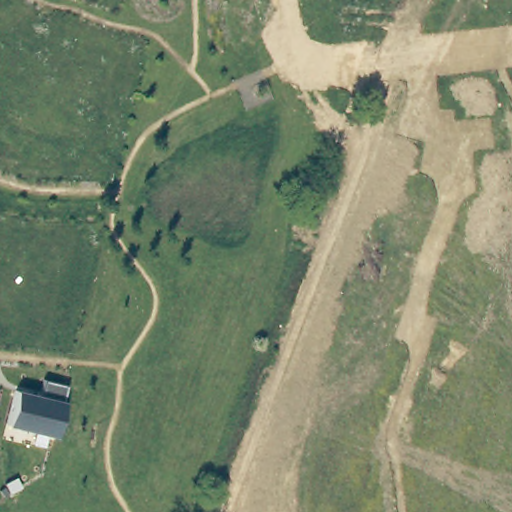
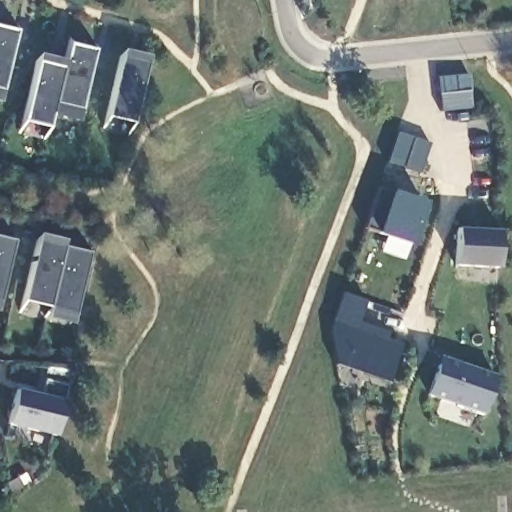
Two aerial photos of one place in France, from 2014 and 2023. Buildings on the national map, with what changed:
new [(15,31),(0,97),(0,27),(15,31)]
new [(22,122),(37,54),(64,60),(68,44),(94,49),(79,109),(76,120),(49,115),(46,127),(22,122)]
new [(122,50),(148,56),(132,122),(106,117),(122,50)]
new [(441,111),(439,94),(438,77),(469,73),(471,91),(472,108),(441,111)]
new [(426,201),(411,246),(375,234),(390,190),(426,201)]
new [(500,230),(499,268),(454,265),(456,227),(500,230)]
new [(23,301),(38,234),(64,240),(62,247),(89,252),(74,312),(71,323),(46,317),(49,307),(23,301)]
new [(13,241),(0,292),(0,237),(13,241)]
new [(331,321),(339,293),(364,302),(358,323),(388,333),(385,338),(402,344),(389,382),(334,363),(331,321)]
new [(442,357),(497,376),(484,415),(428,396),(442,357)]
unchanged [(16,390),(41,396),(45,381),(66,386),(63,401),(53,437),(5,423),(16,390)]

